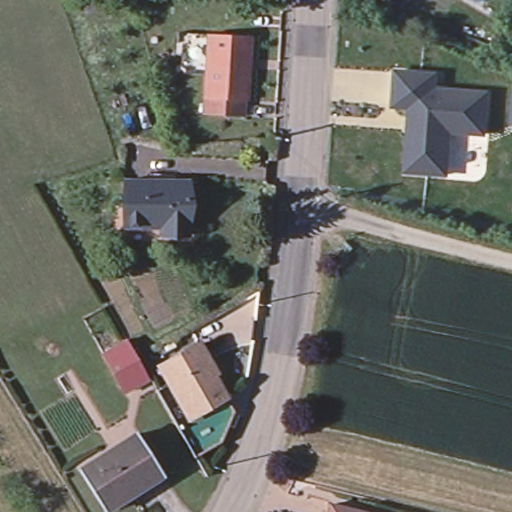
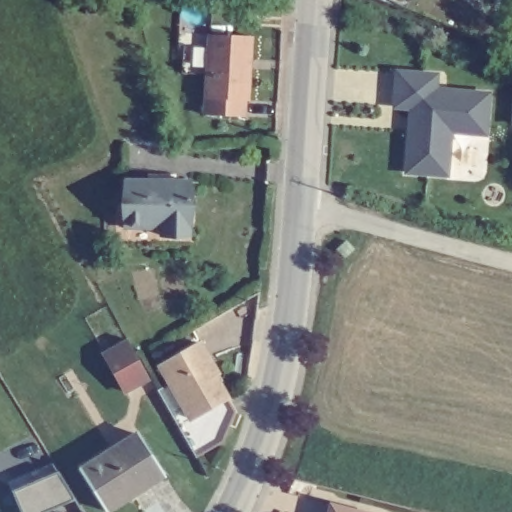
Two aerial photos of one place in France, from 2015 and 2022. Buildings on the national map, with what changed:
unchanged [(109,3),(84,9),(82,0),(108,0),(109,3)]
unchanged [(202,114),(203,98),(206,60),(207,35),(250,37),(249,57),(247,74),(245,101),(242,101),(242,117),(219,115),(202,114)]
unchanged [(411,108),(394,106),(397,72),(436,75),(435,89),(436,89),(488,93),(485,134),(450,131),(447,175),(430,173),(406,172),(409,133),(410,121),(411,108)]
new [(511,123),(512,109),(512,124),(511,123)]
unchanged [(202,192),(194,246),(166,242),(167,233),(132,227),(139,182),(202,192)]
unchanged [(357,198),(355,205),(347,203),(349,196),(357,198)]
unchanged [(227,378),(234,393),(222,424),(222,425),(195,440),(187,428),(157,372),(172,364),(162,347),(202,324),(217,353),(214,355),(219,363),(227,378)]
unchanged [(131,398),(110,359),(132,346),(145,367),(155,386),(131,398)]
unchanged [(101,464),(139,440),(165,481),(127,506),(117,512),(108,512),(85,475),(101,464)]
new [(57,472),(81,512),(19,512),(11,492),(57,472)]
unchanged [(348,512),(331,512),(332,508),(348,512)]

